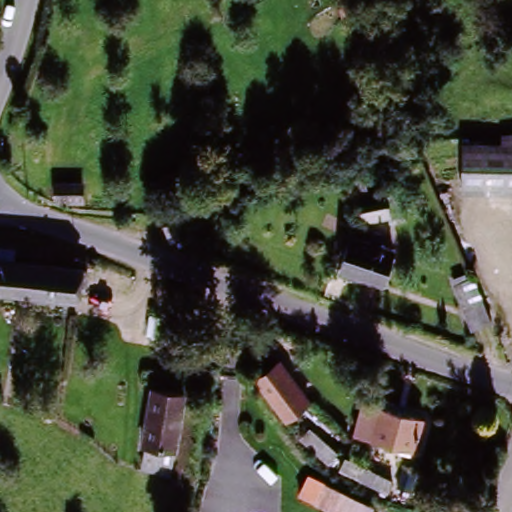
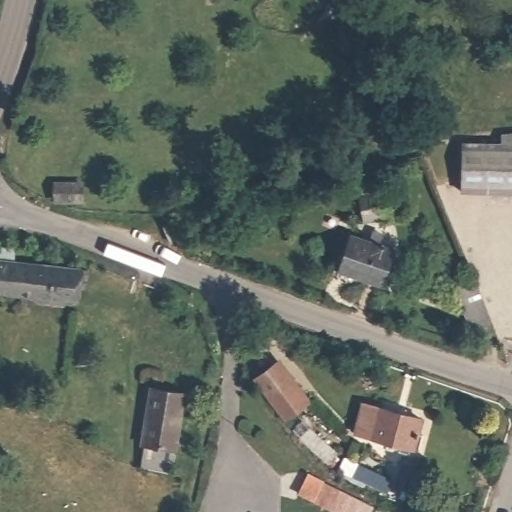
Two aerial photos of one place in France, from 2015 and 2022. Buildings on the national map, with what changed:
unchanged [(362,10),(345,11),(343,0),(361,0),(362,10)]
unchanged [(506,139),(512,138),(512,193),(465,191),(466,144),(505,146),(506,139)]
unchanged [(80,192),(55,189),(56,173),(82,177),(80,192)]
unchanged [(367,179),(370,195),(387,191),(399,190),(405,221),(394,222),(394,218),(365,225),(356,183),(367,179)]
unchanged [(340,268),(352,236),(394,251),(382,283),(340,268)]
unchanged [(0,249),(14,251),(12,263),(72,272),(68,302),(0,292),(0,249)]
unchanged [(474,279),(492,332),(480,337),(460,285),(474,279)]
unchanged [(311,403),(285,423),(252,379),(280,359),(311,403)]
unchanged [(176,453),(170,473),(139,468),(141,446),(150,386),(187,392),(176,453)]
unchanged [(424,419),(418,454),(352,438),(360,404),(424,419)]
unchanged [(359,479),(365,468),(392,482),(386,494),(359,479)]
unchanged [(373,507),(371,512),(329,512),(295,495),(308,473),(373,507)]

